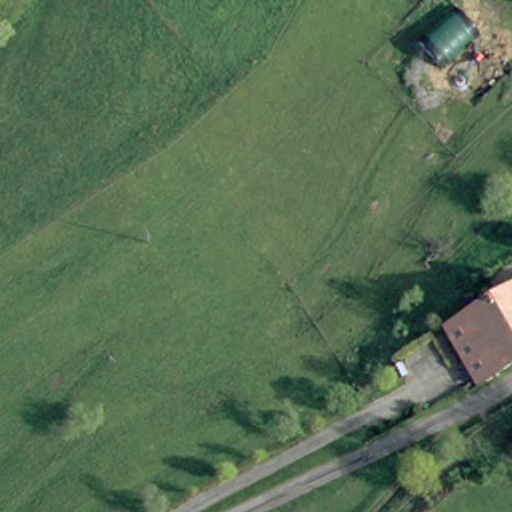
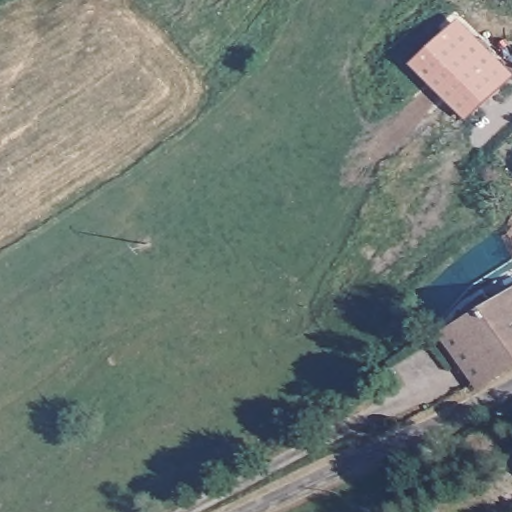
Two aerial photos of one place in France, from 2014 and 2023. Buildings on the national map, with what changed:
new [(460,16),(512,69),(512,76),(469,117),(412,60),(460,16)]
unchanged [(478,383),(445,332),(512,288),(512,363),(478,383)]

